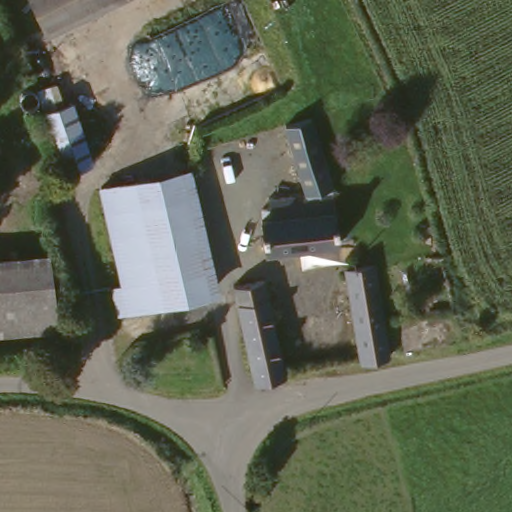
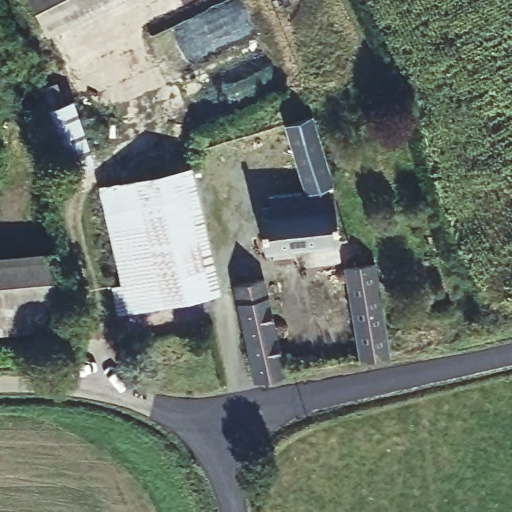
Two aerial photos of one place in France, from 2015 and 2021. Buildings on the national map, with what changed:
unchanged [(49,33),(34,0),(120,0),(103,8),(49,33)]
unchanged [(73,105),(94,159),(64,170),(41,114),(72,103),(73,105)]
unchanged [(263,218),(262,209),(270,208),(268,199),(305,193),(292,128),(318,120),(333,185),(341,242),(267,253),(261,219),(263,218)]
unchanged [(109,292),(119,289),(101,189),(102,189),(184,174),(194,172),(201,219),(213,295),(113,310),(113,309),(109,292)]
unchanged [(49,255),(58,324),(0,333),(0,262),(49,255)]
unchanged [(368,263),(384,354),(357,359),(339,265),(368,263)]
unchanged [(260,279),(283,373),(256,379),(253,365),(232,284),(260,279)]

